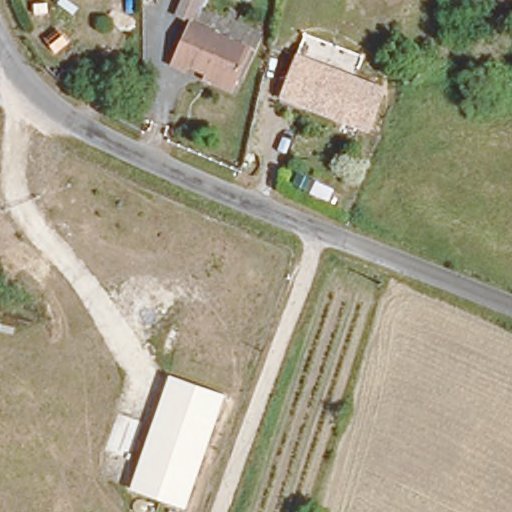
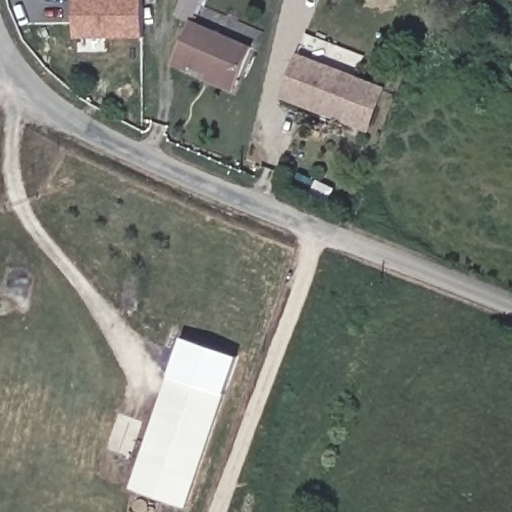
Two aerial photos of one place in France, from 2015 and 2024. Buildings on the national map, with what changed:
new [(74,36),(73,0),(142,0),(142,37),(74,36)]
unchanged [(236,87),(190,63),(187,69),(170,61),(192,19),(254,51),(236,87)]
unchanged [(339,116),(280,92),(294,57),(352,81),(339,116)]
unchanged [(352,81),(386,94),(373,129),(339,116),(352,81)]
new [(170,373),(185,336),(240,356),(225,393),(170,373)]
unchanged [(225,393),(185,508),(130,488),(170,373),(225,393)]

